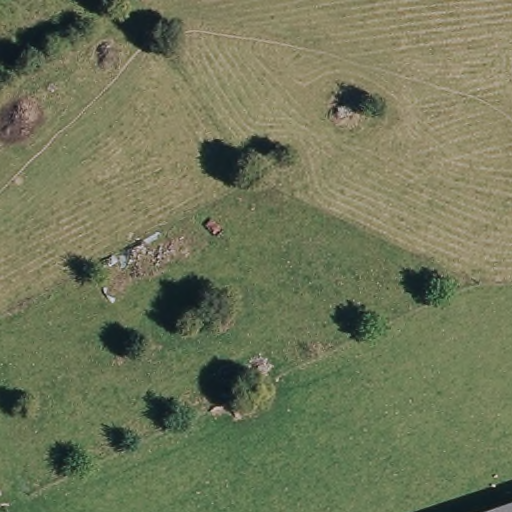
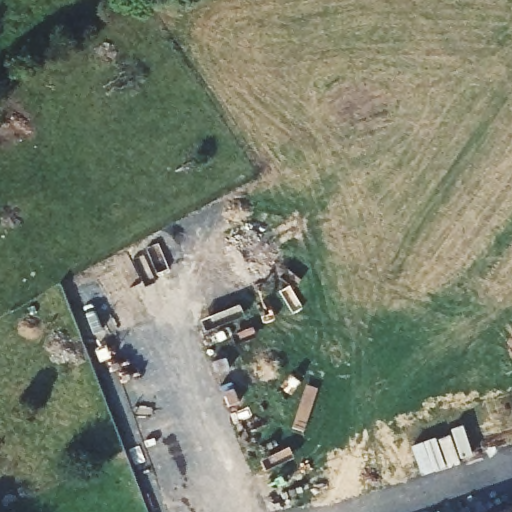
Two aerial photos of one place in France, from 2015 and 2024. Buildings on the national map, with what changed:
unchanged [(512,512),(499,512),(512,507),(512,512)]

